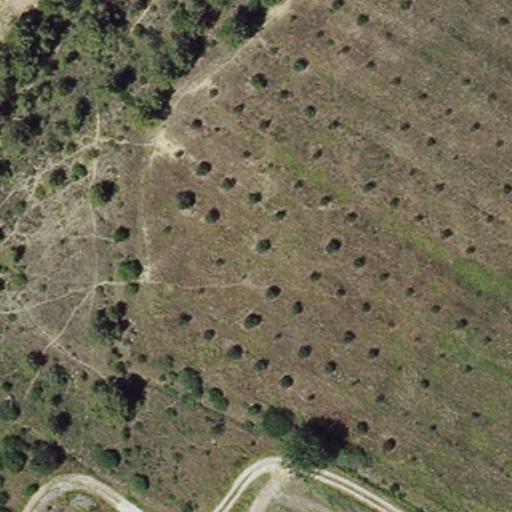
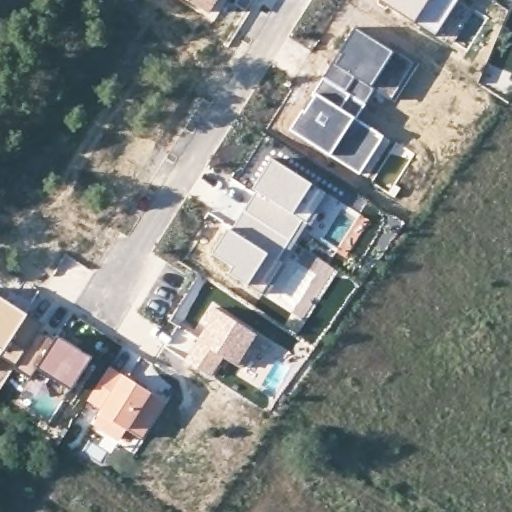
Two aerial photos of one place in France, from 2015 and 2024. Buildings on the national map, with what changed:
new [(185,0),(218,0),(209,16),(185,0)]
new [(454,44),(437,36),(377,0),(458,0),(459,1),(474,11),(454,44)]
new [(385,136),(360,176),(287,129),(355,26),(395,52),(415,64),(393,100),(374,89),(358,117),(385,136)]
new [(305,225),(277,262),(280,264),(262,292),(227,272),(230,267),(210,254),(254,191),(252,189),(272,156),(314,182),(329,193),(308,224),(307,226),(305,225)]
new [(179,325),(170,320),(198,275),(206,281),(179,325)]
new [(40,330),(55,340),(58,337),(92,357),(71,388),(37,367),(31,376),(15,365),(0,387),(0,297),(29,316),(40,330)]
new [(192,333),(212,304),(258,333),(238,367),(224,357),(211,377),(184,360),(165,347),(179,325),(192,333)]
new [(109,365),(134,380),(162,397),(167,400),(141,441),(127,431),(118,442),(91,426),(100,410),(86,401),(109,365)]

